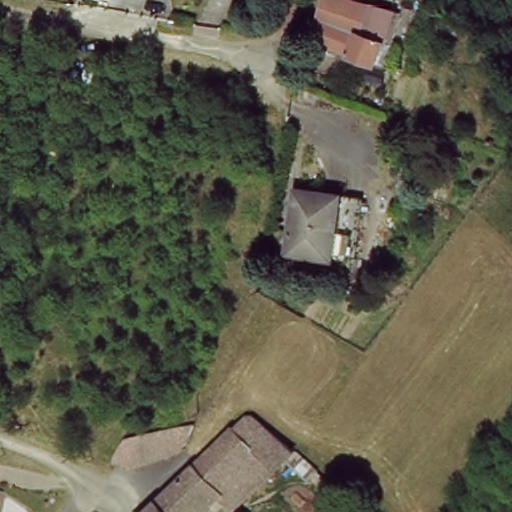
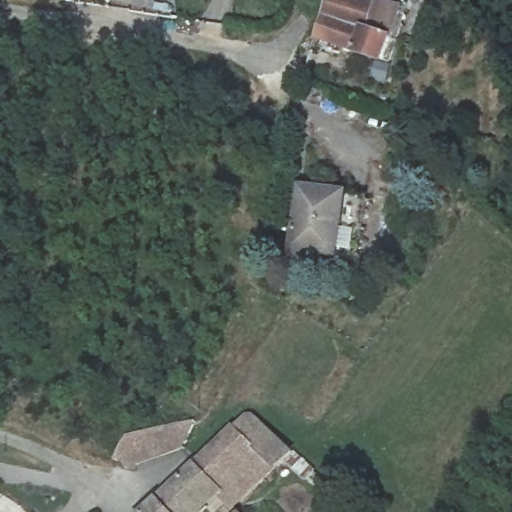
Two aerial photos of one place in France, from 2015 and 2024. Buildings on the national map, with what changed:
unchanged [(395,47),(388,46),(385,59),(328,43),(333,20),(337,0),(377,0),(401,5),(396,32),(399,34),(395,47)]
unchanged [(293,247),(311,186),(358,200),(342,261),(293,247)]
unchanged [(153,510),(247,403),(290,437),(239,495),(228,487),(209,512),(154,512),(153,510)]
unchanged [(120,445),(138,430),(182,415),(189,436),(141,450),(120,445)]
unchanged [(255,500),(269,512),(243,512),(255,500)]

